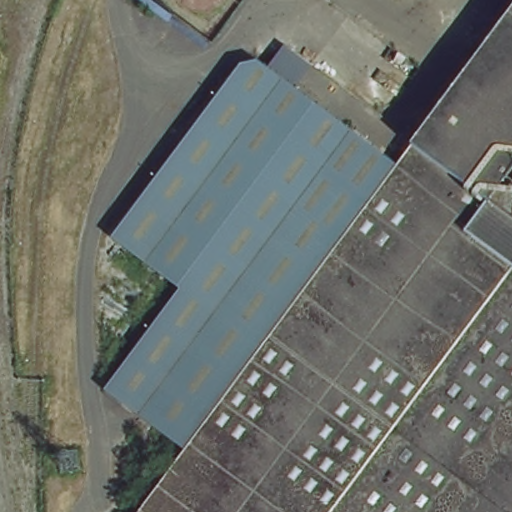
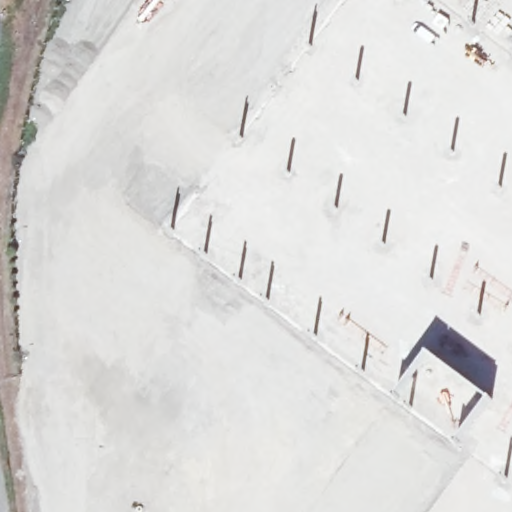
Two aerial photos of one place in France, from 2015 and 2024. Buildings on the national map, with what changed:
demolished [(198,459),(117,401),(189,298),(120,249),(243,76),(267,71),(278,80),(298,95),(302,97),(403,173),(512,22),(512,512),(159,512),(198,459)]

